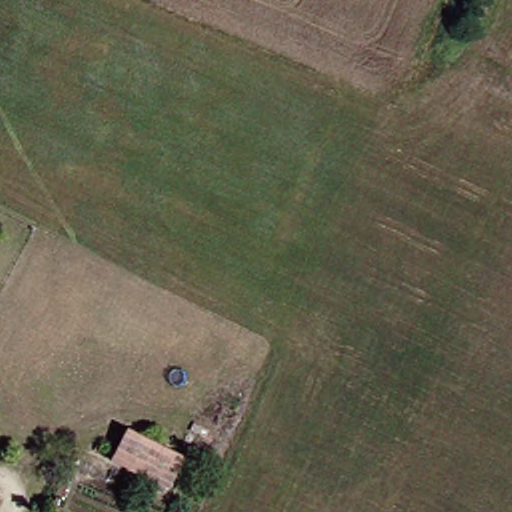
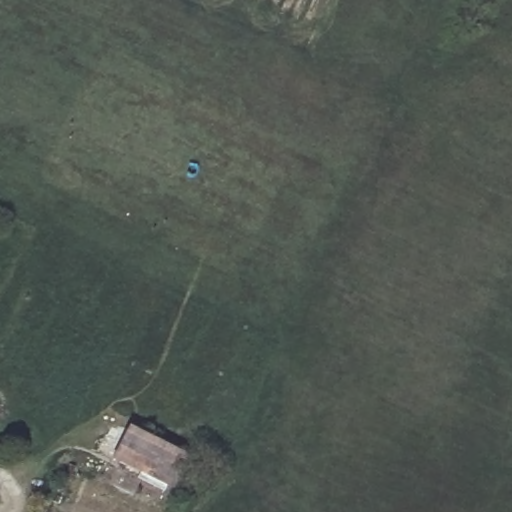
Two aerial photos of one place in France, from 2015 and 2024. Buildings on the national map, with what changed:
unchanged [(156,483),(102,452),(123,422),(174,451),(156,483)]
unchanged [(47,507),(41,505),(44,497),(49,499),(47,507)]

